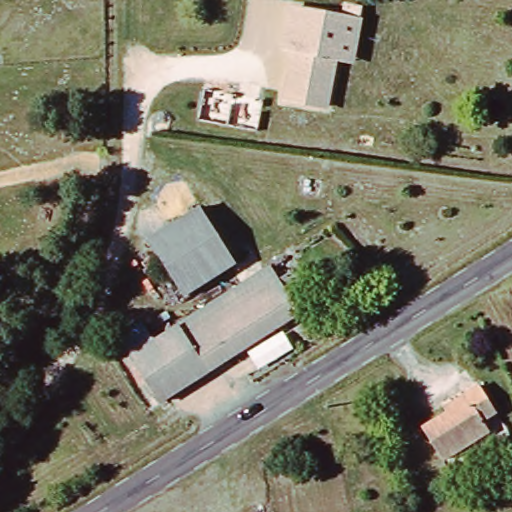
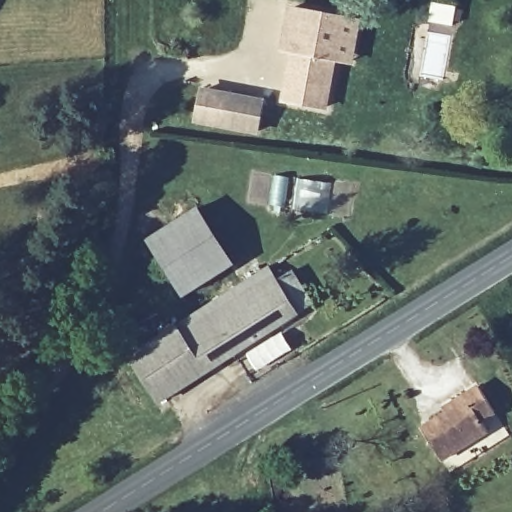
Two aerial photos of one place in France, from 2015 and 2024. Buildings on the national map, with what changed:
unchanged [(363,18),(354,66),(336,62),(327,111),(280,103),(291,53),(278,50),(287,4),(363,18)]
new [(200,86),(266,98),(259,135),(193,123),(200,86)]
unchanged [(238,264),(187,299),(149,242),(201,207),(238,264)]
unchanged [(259,270),(269,285),(280,278),(300,310),(169,397),(139,351),(259,270)]
unchanged [(169,397),(151,408),(123,361),(139,351),(169,397)]
unchanged [(476,414),(426,443),(416,425),(445,410),(440,403),(475,382),(489,406),(476,414)]
unchanged [(476,414),(486,431),(437,460),(426,443),(476,414)]

